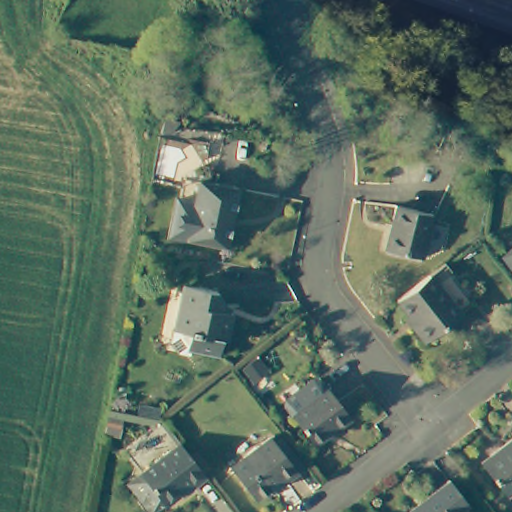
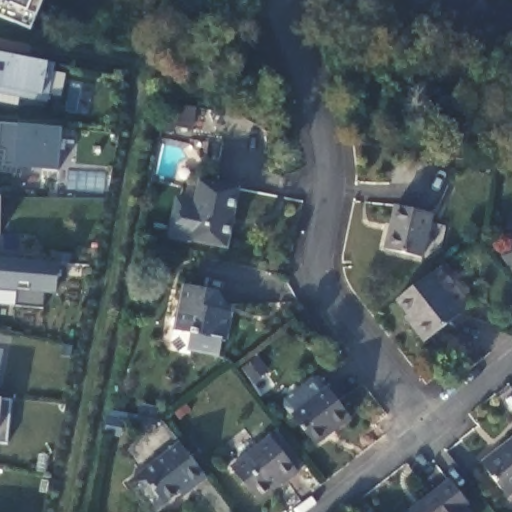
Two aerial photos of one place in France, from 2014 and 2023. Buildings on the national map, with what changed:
new [(0,21),(0,0),(44,0),(29,34),(0,21)]
new [(48,94),(46,103),(0,93),(0,53),(47,63),(54,65),(52,74),(66,76),(62,98),(48,94)]
new [(14,166),(0,164),(1,144),(0,144),(0,122),(19,124),(61,129),(59,171),(14,166)]
unchanged [(243,194),(231,253),(191,244),(175,242),(182,207),(197,209),(202,186),(243,194)]
unchanged [(429,214),(429,218),(435,219),(425,259),(389,252),(399,207),(429,214)]
unchanged [(501,263),(512,254),(512,277),(501,263)]
new [(45,294),(43,309),(14,306),(14,293),(0,292),(0,258),(59,263),(56,294),(45,294)]
unchanged [(462,319),(424,348),(404,324),(406,322),(395,305),(430,279),(462,319)]
unchanged [(210,291),(220,304),(219,311),(225,312),(223,339),(215,338),(214,354),(185,349),(187,334),(173,332),(178,286),(210,291)]
unchanged [(336,436),(333,434),(315,449),(292,419),(285,411),(286,404),(313,384),(319,384),(326,393),(327,391),(353,423),(336,436)]
new [(0,443),(0,399),(1,399),(11,400),(8,444),(0,443)]
unchanged [(299,477),(285,489),(281,484),(256,503),(233,473),(272,443),(299,477)]
unchanged [(509,501),(483,467),(512,443),(512,498),(509,501)]
unchanged [(130,490),(145,479),(182,450),(207,483),(193,494),(190,491),(166,508),(160,512),(148,512),(130,490)]
unchanged [(450,481),(469,504),(465,508),(468,512),(410,512),(450,481)]

